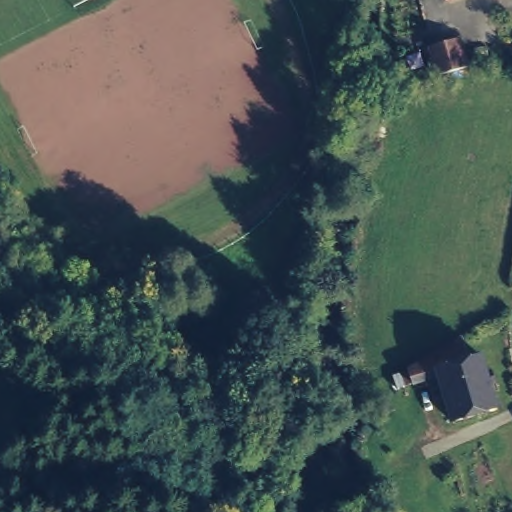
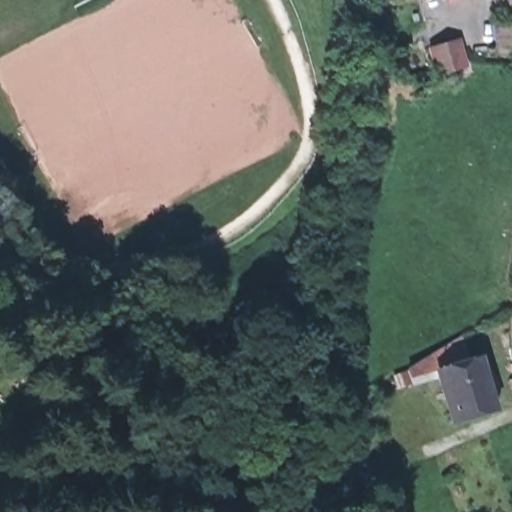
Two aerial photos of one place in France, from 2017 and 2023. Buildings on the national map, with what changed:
unchanged [(459,35),(465,65),(435,71),(428,41),(459,35)]
unchanged [(436,371),(411,381),(406,363),(431,347),(435,362),(477,350),(494,403),(450,416),(436,371)]

